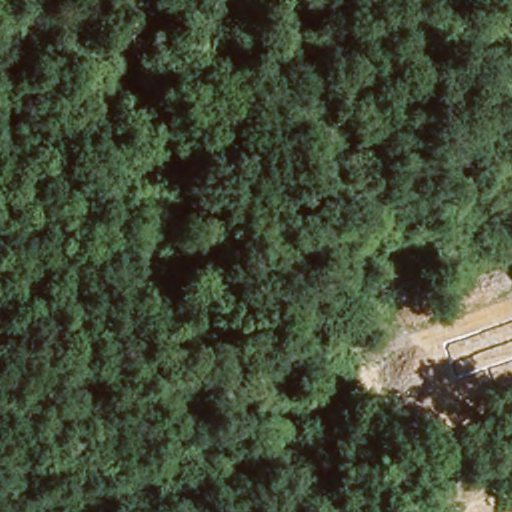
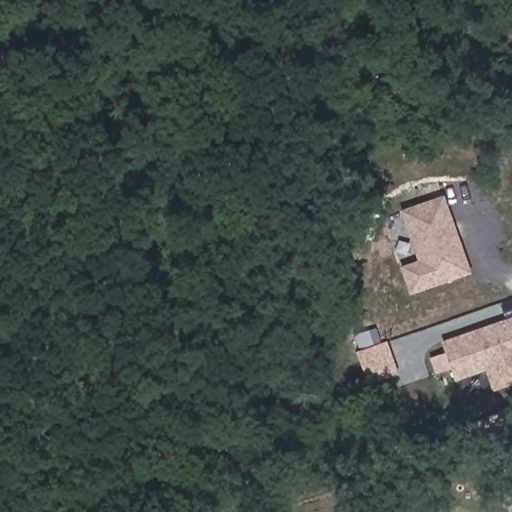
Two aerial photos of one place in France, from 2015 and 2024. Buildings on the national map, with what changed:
new [(443,195),(470,273),(414,293),(410,291),(399,266),(417,260),(400,210),(443,195)]
new [(492,390),(485,370),(453,380),(451,370),(435,374),(430,358),(445,354),(440,341),(512,317),(512,383),(492,390)]

